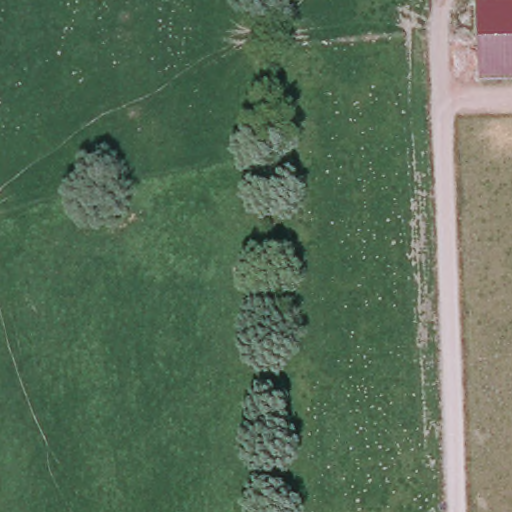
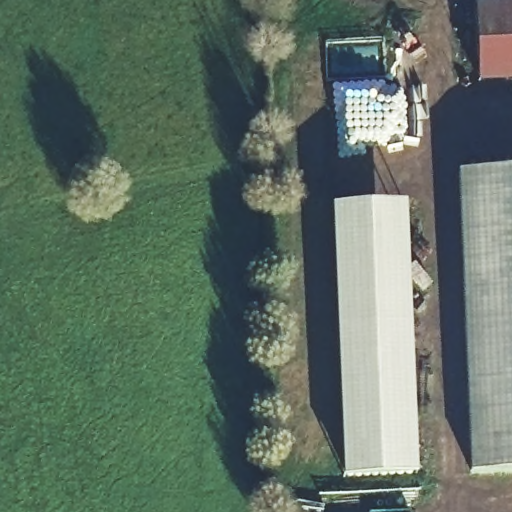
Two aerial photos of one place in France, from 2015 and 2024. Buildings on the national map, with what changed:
unchanged [(512,5),(484,6),(484,0),(512,0),(512,5)]
unchanged [(474,6),(484,6),(512,5),(512,82),(475,84),(474,6)]
new [(512,488),(472,488),(469,187),(512,186),(512,488)]
new [(408,264),(415,264),(431,285),(424,291),(409,278),(417,476),(342,479),(331,207),(405,204),(408,264)]

